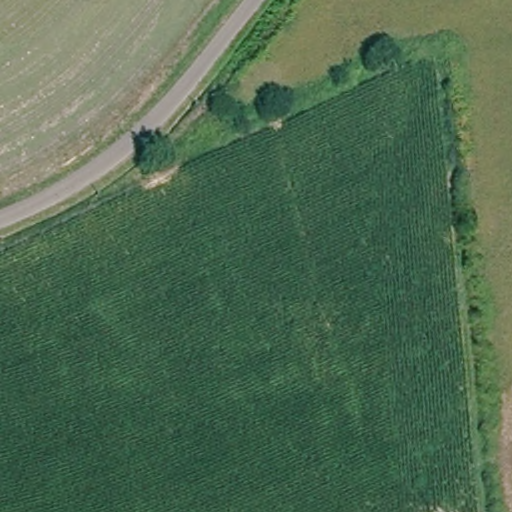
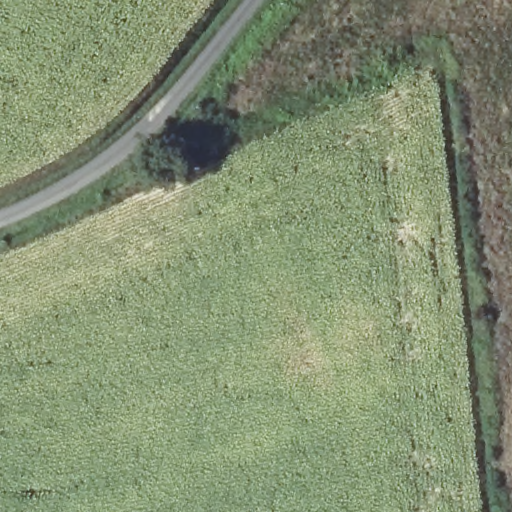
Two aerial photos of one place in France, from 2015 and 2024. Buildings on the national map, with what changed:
[]

